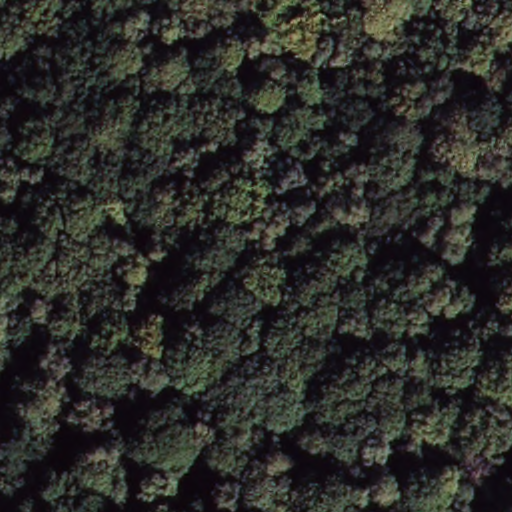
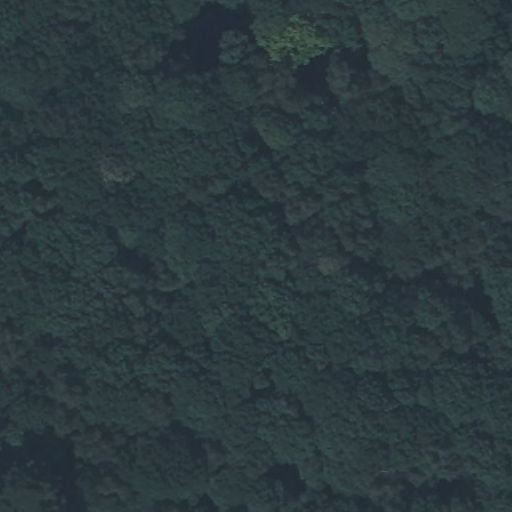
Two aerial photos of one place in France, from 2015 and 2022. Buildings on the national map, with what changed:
[]

